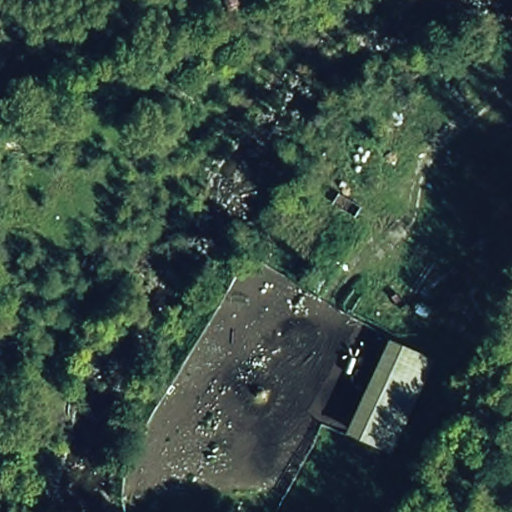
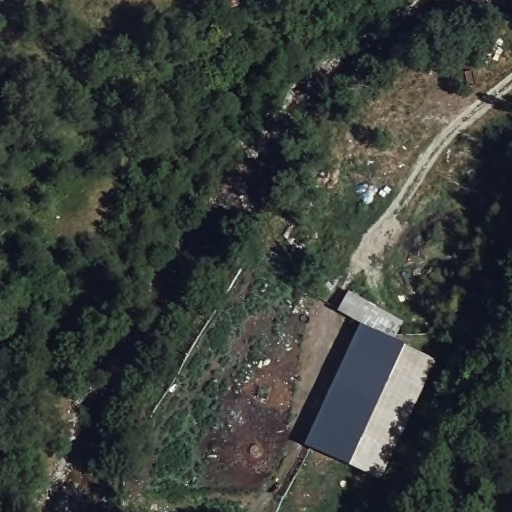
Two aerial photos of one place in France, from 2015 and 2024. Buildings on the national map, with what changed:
unchanged [(388,340),(434,358),(393,453),(345,432),(388,340)]

